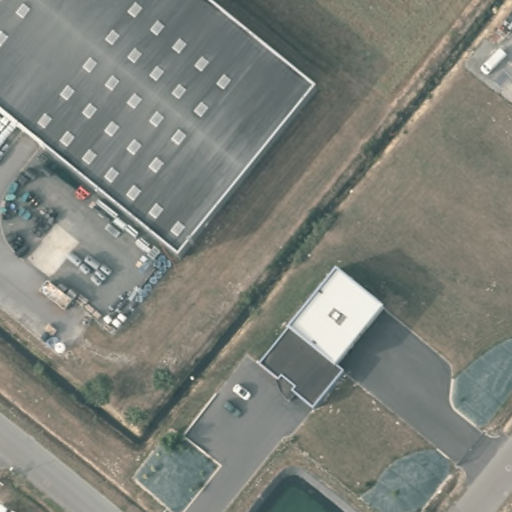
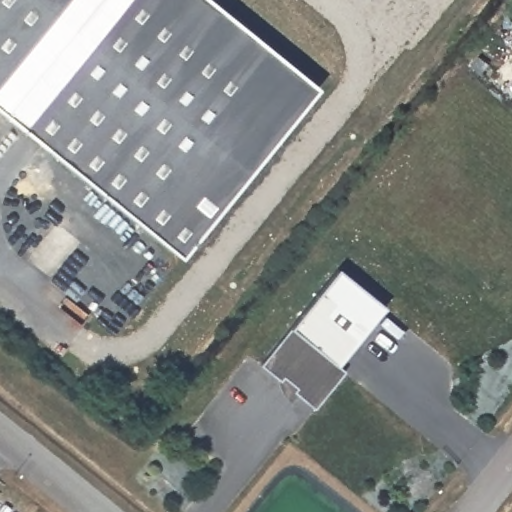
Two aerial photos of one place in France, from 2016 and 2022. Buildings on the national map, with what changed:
unchanged [(316,90),(178,257),(0,114),(0,0),(205,0),(316,90)]
unchanged [(337,365),(344,372),(314,408),(262,365),(293,326),(340,271),(383,307),(337,365)]

